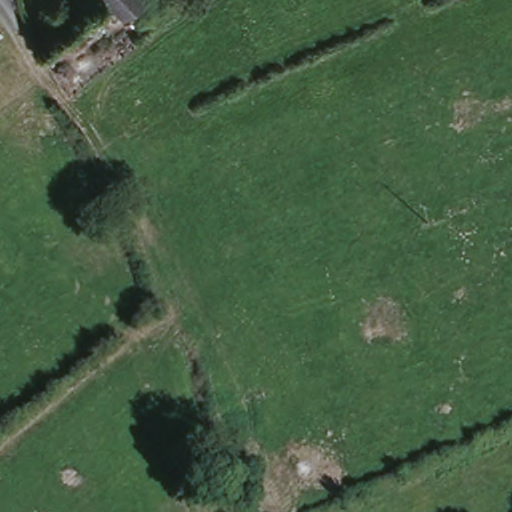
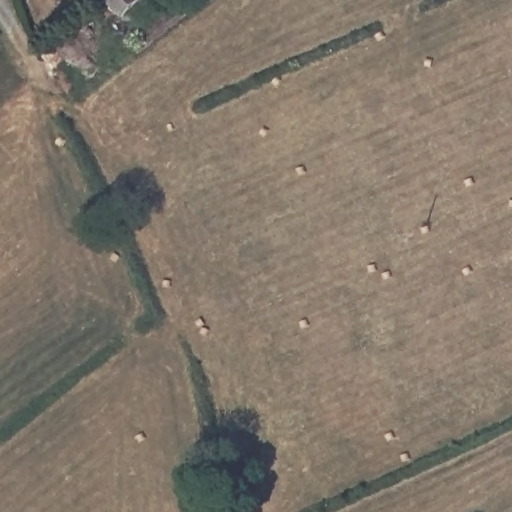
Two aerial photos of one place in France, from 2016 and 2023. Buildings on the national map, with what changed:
unchanged [(125,17),(109,0),(143,0),(125,17)]

